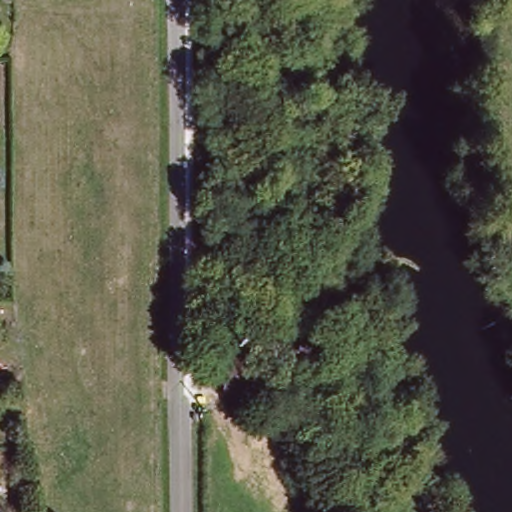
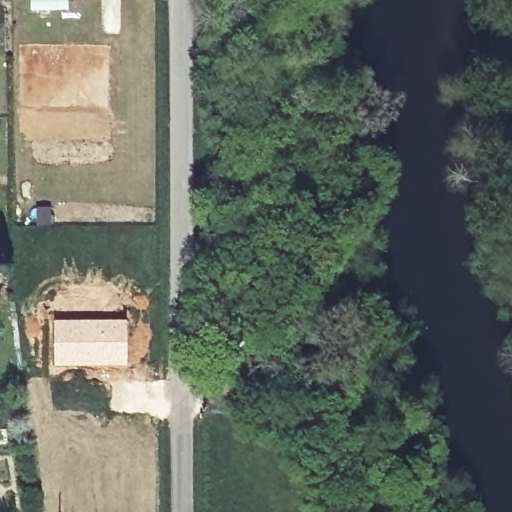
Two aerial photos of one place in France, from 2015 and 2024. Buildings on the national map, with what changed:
new [(52,319),(127,319),(126,365),(52,366),(52,319)]
unchanged [(261,368),(260,400),(239,397),(225,396),(225,362),(261,368)]

